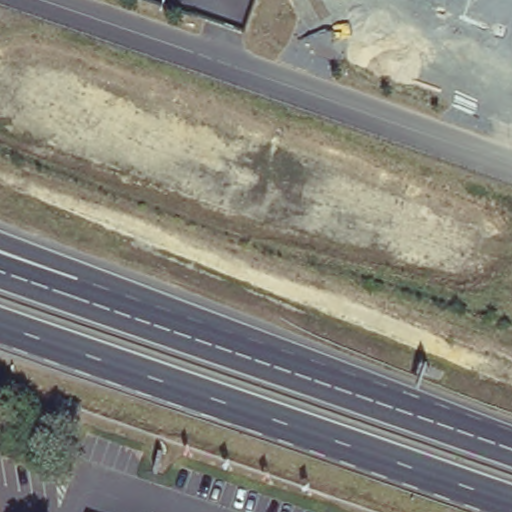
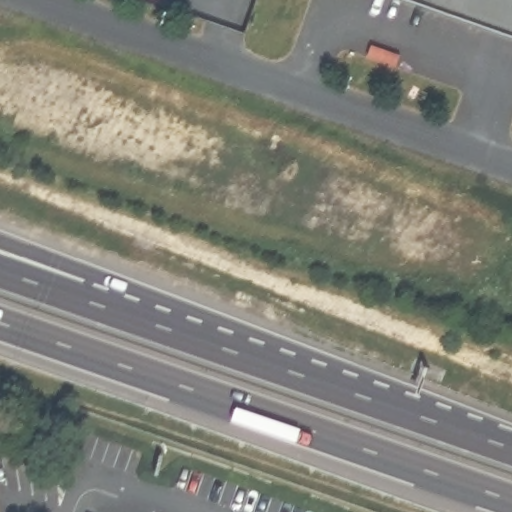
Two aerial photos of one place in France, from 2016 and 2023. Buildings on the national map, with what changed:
new [(512,38),(408,0),(512,0),(512,38)]

